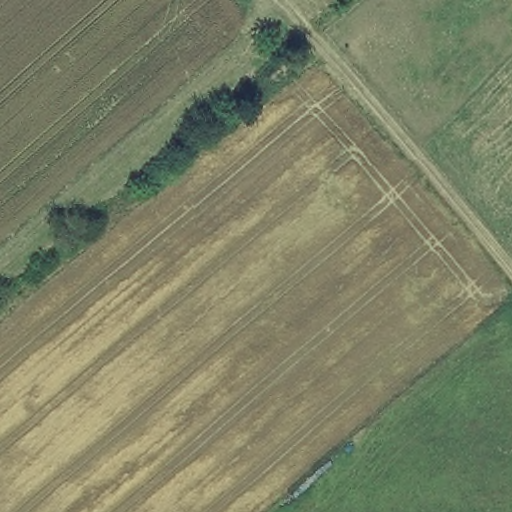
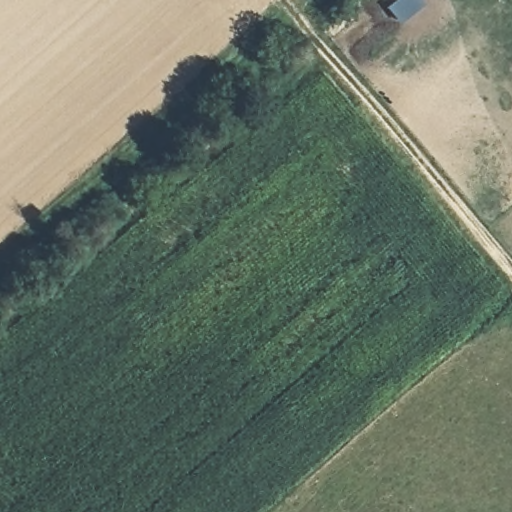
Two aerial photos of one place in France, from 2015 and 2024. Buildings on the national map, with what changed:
new [(393,0),(422,0),(423,1),(399,22),(385,6),(393,0)]

